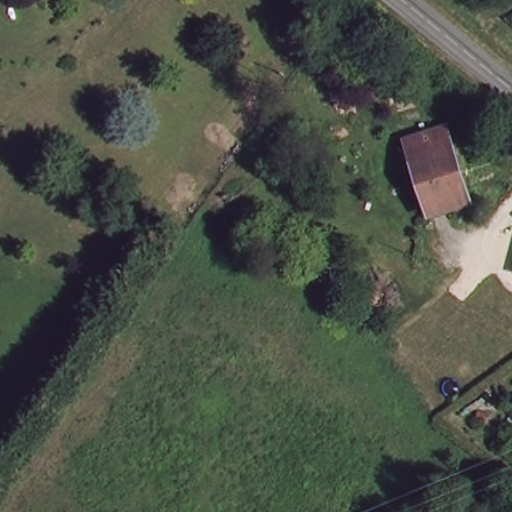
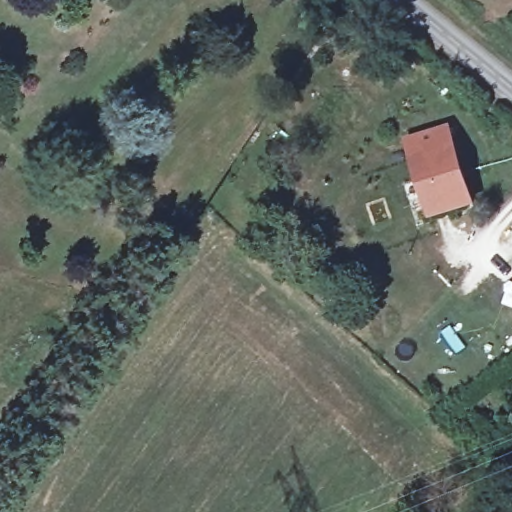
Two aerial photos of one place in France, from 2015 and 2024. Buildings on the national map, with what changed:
unchanged [(446,132),(469,205),(429,218),(406,145),(446,132)]

